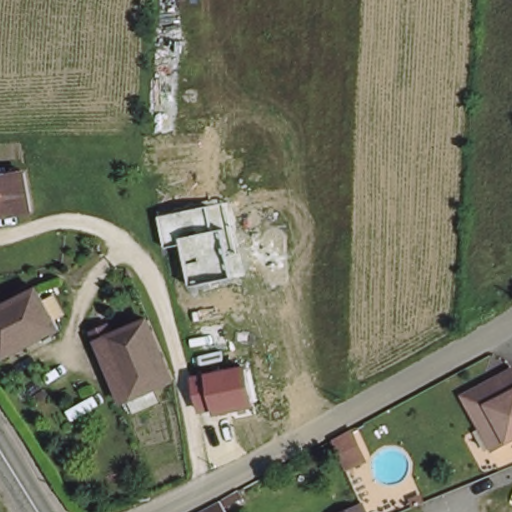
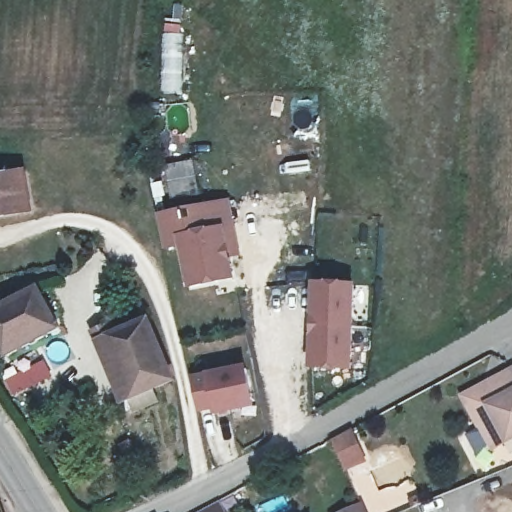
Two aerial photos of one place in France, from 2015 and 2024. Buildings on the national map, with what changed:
unchanged [(30,177),(32,216),(0,219),(0,178),(30,177)]
unchanged [(231,200),(241,253),(228,256),(231,279),(191,287),(181,244),(164,246),(159,215),(231,200)]
new [(308,369),(312,281),(358,284),(354,372),(308,369)]
unchanged [(63,330),(35,346),(12,303),(41,289),(63,330)]
unchanged [(9,360),(0,343),(0,308),(0,309),(12,303),(35,346),(9,360)]
unchanged [(100,344),(151,319),(166,348),(113,373),(100,344)]
unchanged [(126,400),(113,373),(166,348),(179,378),(126,400)]
unchanged [(205,374),(248,364),(256,407),(215,415),(213,409),(199,412),(189,376),(205,374)]
unchanged [(512,439),(497,448),(467,396),(512,370),(512,439)]
unchanged [(371,458),(347,468),(334,438),(356,426),(371,458)]
unchanged [(368,512),(337,512),(364,502),(368,512)]

